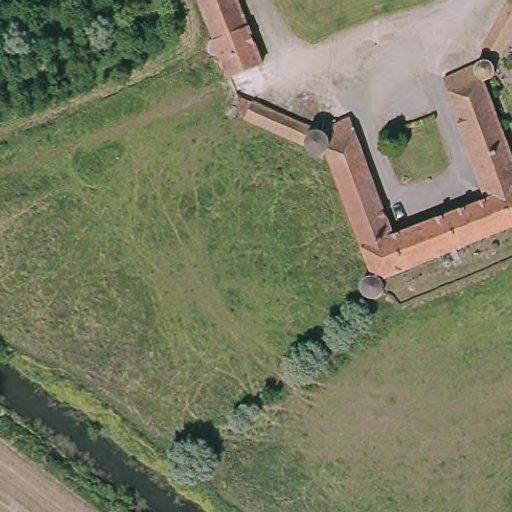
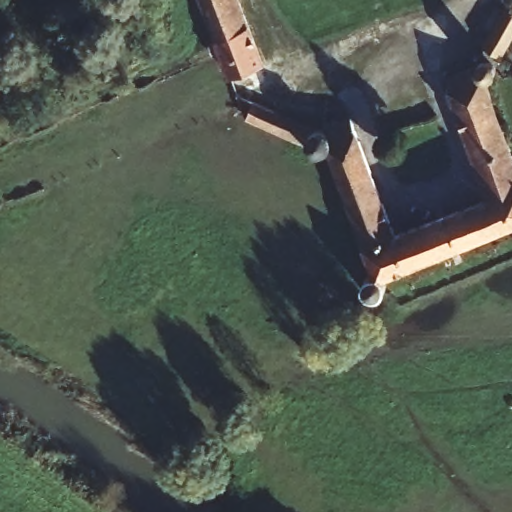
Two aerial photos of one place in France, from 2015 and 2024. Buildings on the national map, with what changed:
unchanged [(223,33),(236,70),(222,75),(213,51),(205,53),(196,45),(196,34),(207,29),(196,0),(232,0),(241,24),(223,33)]
unchanged [(253,105),(314,134),(349,121),(393,235),(489,202),(446,86),(474,75),(481,66),(486,66),(498,71),(489,90),(492,99),(512,149),(512,230),(435,258),(379,278),(373,286),(369,288),(362,282),(359,276),(367,263),(323,158),(298,146),(243,121),(253,105)]

